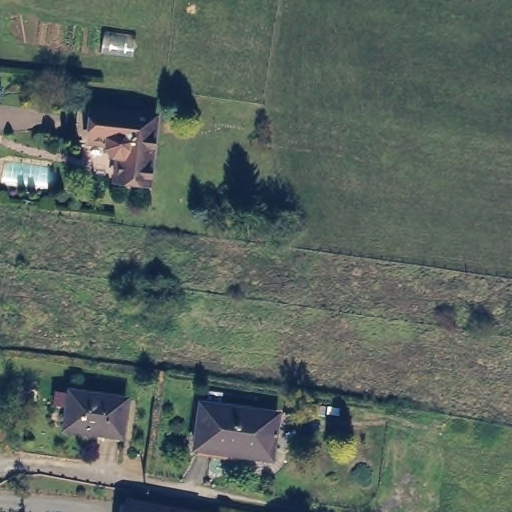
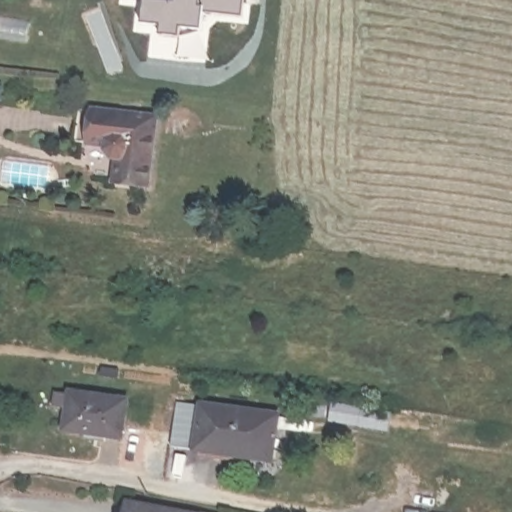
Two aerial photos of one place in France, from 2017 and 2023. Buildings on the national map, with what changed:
new [(206,13),(204,31),(182,29),(180,40),(159,37),(160,27),(144,25),(145,0),(245,0),(244,17),(206,13)]
unchanged [(146,187),(114,184),(116,162),(113,161),(105,152),(105,148),(89,146),(75,144),(79,110),(93,111),(155,119),(146,187)]
unchanged [(135,401),(130,438),(75,431),(77,408),(64,407),(66,392),(80,394),(80,393),(135,401)]
unchanged [(271,417),(266,462),(191,451),(197,407),(271,417)]
unchanged [(118,507),(147,512),(117,512),(118,507)]

